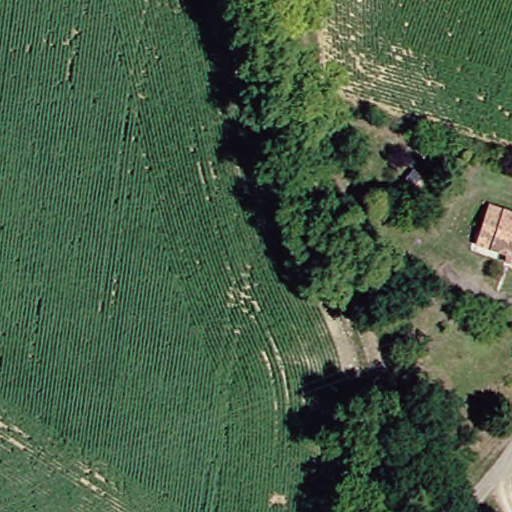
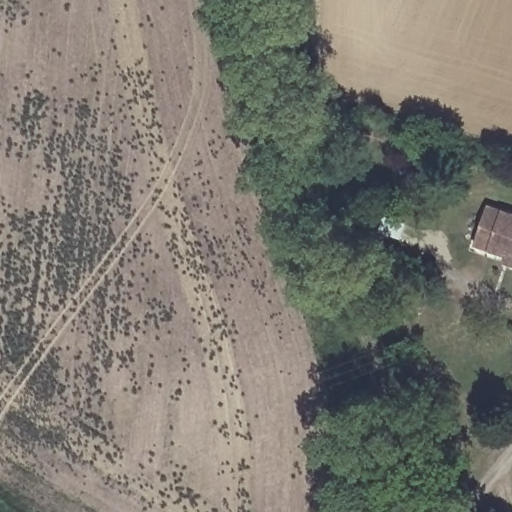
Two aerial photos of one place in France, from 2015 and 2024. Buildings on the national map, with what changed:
unchanged [(493,263),(495,257),(463,247),(477,206),(512,218),(512,269),(493,263)]

